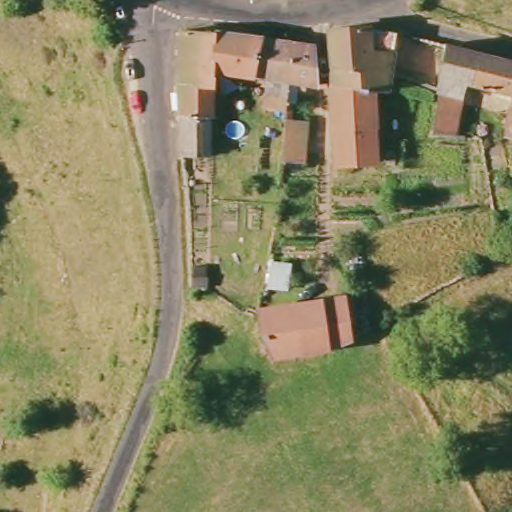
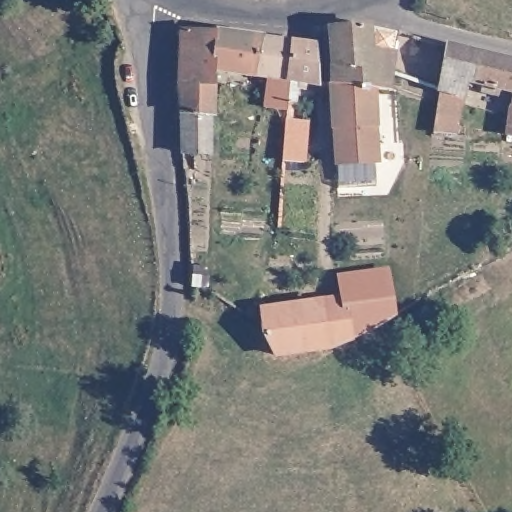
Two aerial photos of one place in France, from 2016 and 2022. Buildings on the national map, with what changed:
unchanged [(327,81),(324,30),(363,26),(391,34),(384,77),(382,90),(327,81)]
unchanged [(178,86),(181,31),(215,34),(214,71),(213,103),(212,117),(209,118),(209,155),(183,153),(178,86)]
unchanged [(263,39),(290,43),(285,105),(285,111),(264,109),(267,77),(214,71),(215,34),(263,39)]
unchanged [(447,42),(512,59),(512,89),(465,78),(461,92),(440,86),(447,42)]
unchanged [(315,47),(317,85),(298,84),(294,104),(285,105),(290,43),(315,47)]
unchanged [(331,161),(329,126),(327,81),(382,90),(377,118),(397,120),(395,145),(386,143),(382,162),(362,162),(331,161)]
unchanged [(510,102),(512,94),(512,131),(505,130),(510,102)]
unchanged [(285,120),(307,123),(304,161),(282,161),(285,120)]
new [(352,343),(345,296),(339,297),(336,275),(390,267),(396,316),(352,343)]
unchanged [(345,296),(352,343),(326,353),(271,362),(258,339),(255,309),(345,296)]

